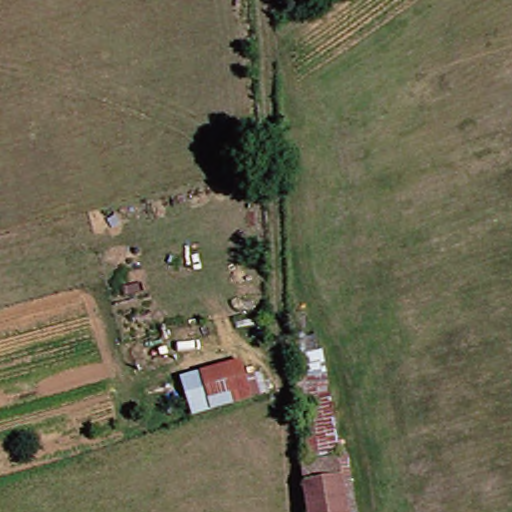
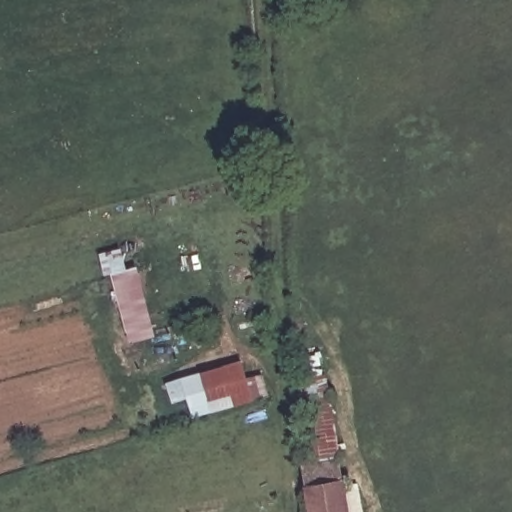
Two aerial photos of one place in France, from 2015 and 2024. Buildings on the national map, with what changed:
new [(137,268),(157,338),(130,345),(111,275),(105,277),(99,256),(120,250),(127,271),(137,268)]
unchanged [(249,367),(259,400),(220,411),(210,377),(249,367)]
unchanged [(348,459),(350,480),(356,512),(314,512),(310,489),(307,466),(317,464),(304,380),(335,374),(348,459)]

